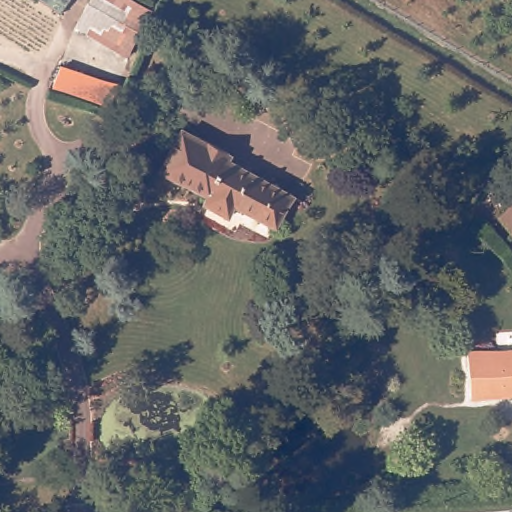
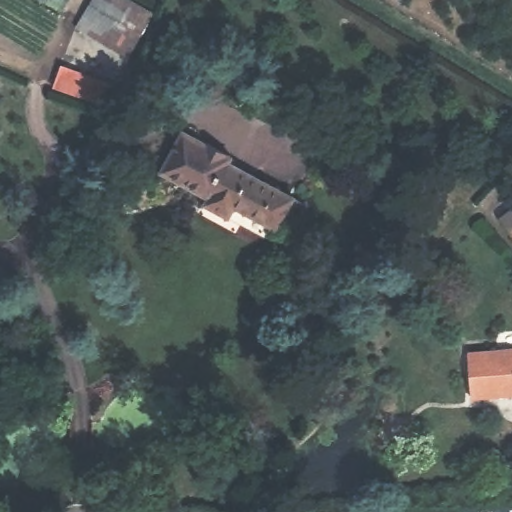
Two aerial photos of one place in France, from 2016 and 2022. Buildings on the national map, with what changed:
unchanged [(46,0),(71,0),(64,12),(46,0)]
unchanged [(133,55),(82,26),(96,0),(137,0),(154,10),(133,55)]
unchanged [(60,68),(108,86),(99,105),(52,89),(60,68)]
unchanged [(234,205),(228,217),(203,204),(207,197),(159,170),(182,130),(229,156),(227,160),(293,197),(275,228),(234,205)]
unchanged [(499,220),(512,210),(512,236),(499,220)]
unchanged [(478,396),(474,350),(512,347),(512,393),(478,396)]

